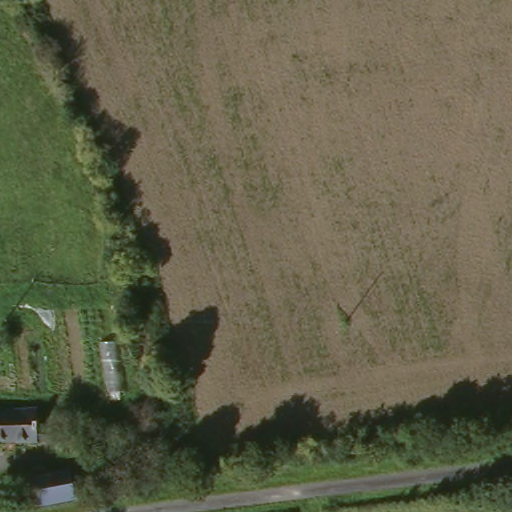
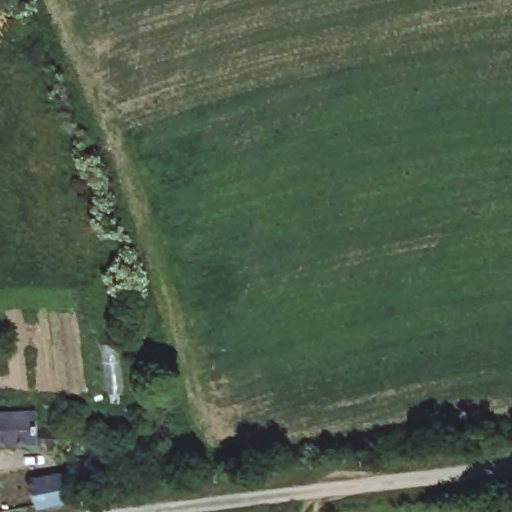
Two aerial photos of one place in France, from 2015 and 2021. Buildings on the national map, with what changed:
unchanged [(44,427),(71,427),(69,445),(0,441),(0,413),(46,415),(44,427)]
unchanged [(39,476),(78,468),(82,492),(42,500),(39,476)]

